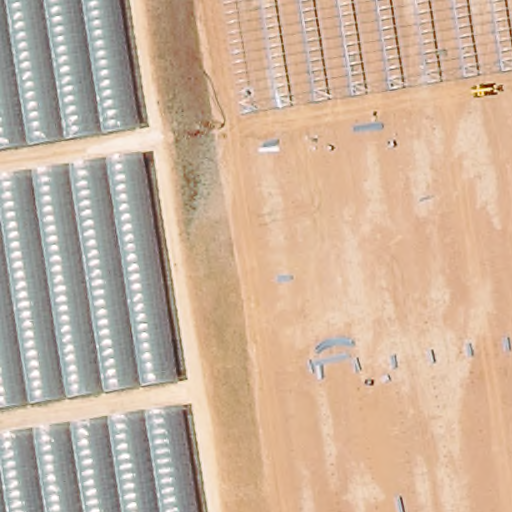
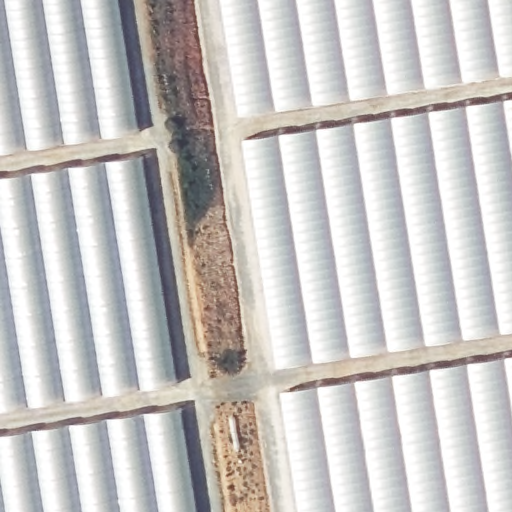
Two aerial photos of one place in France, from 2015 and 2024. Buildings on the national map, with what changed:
unchanged [(140,153),(195,512),(0,512),(0,0),(116,0),(140,153)]
new [(239,108),(224,0),(512,0),(512,67),(239,108)]
new [(512,96),(512,329),(275,363),(241,137),(512,96)]
new [(299,512),(280,390),(512,355),(512,512),(299,512)]

